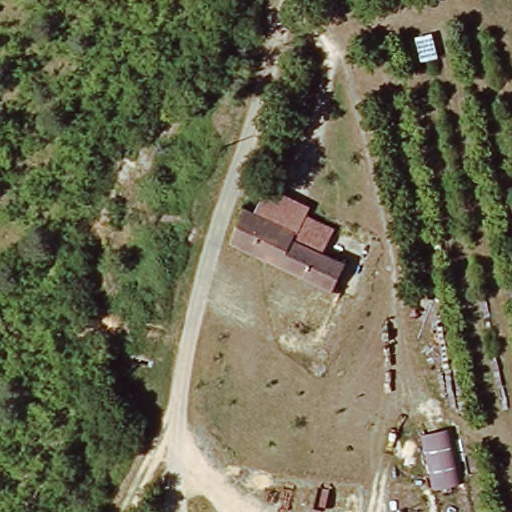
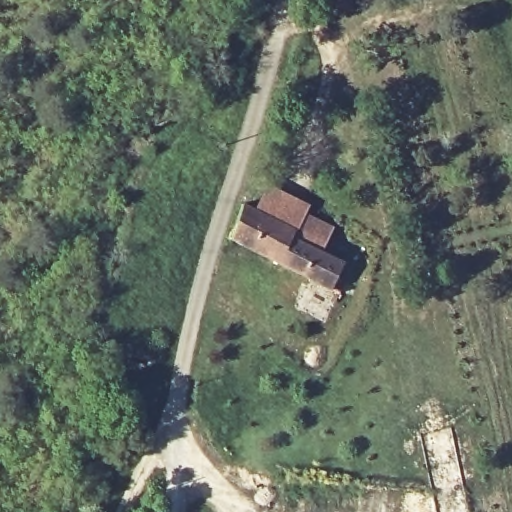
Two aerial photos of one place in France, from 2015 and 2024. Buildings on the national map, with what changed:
unchanged [(254,206),(260,195),(285,191),(309,200),(304,210),(335,224),(322,250),(343,261),(332,289),(231,241),(241,202),(254,206)]
new [(417,437),(445,430),(457,484),(430,490),(417,437)]

